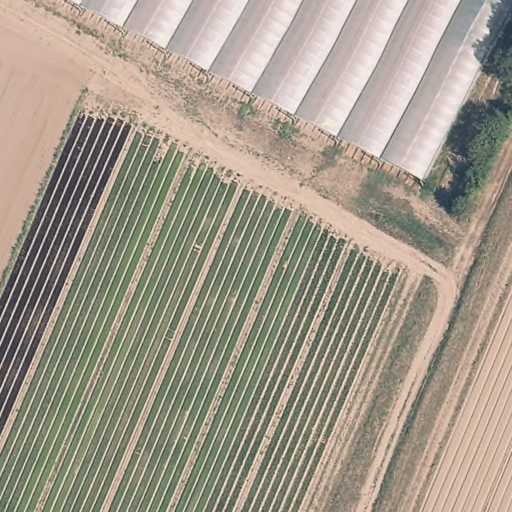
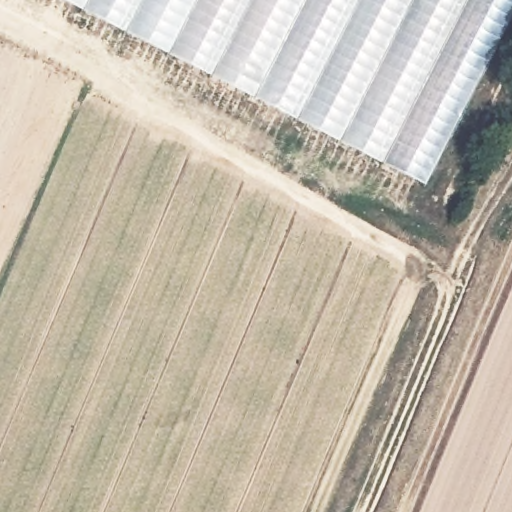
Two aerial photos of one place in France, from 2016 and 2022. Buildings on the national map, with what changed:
unchanged [(62,0),(512,0),(512,1),(407,191),(62,0)]

